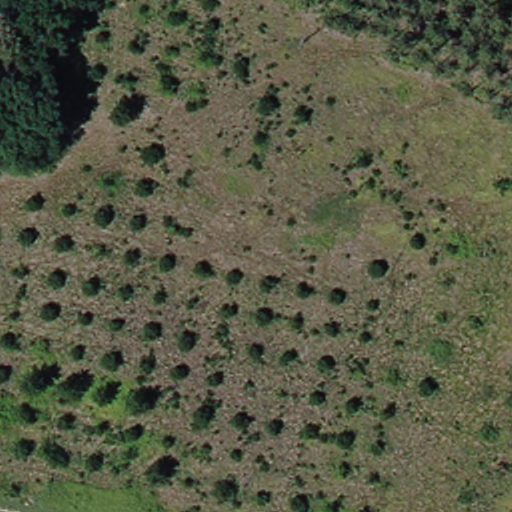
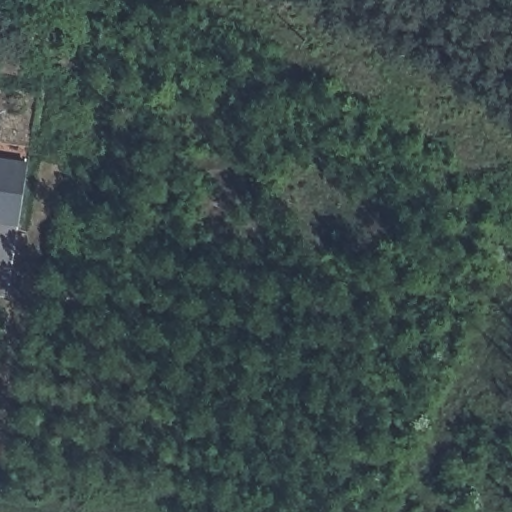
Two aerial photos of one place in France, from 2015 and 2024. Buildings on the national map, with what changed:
new [(27,164),(19,218),(17,224),(0,222),(0,160),(27,164)]

